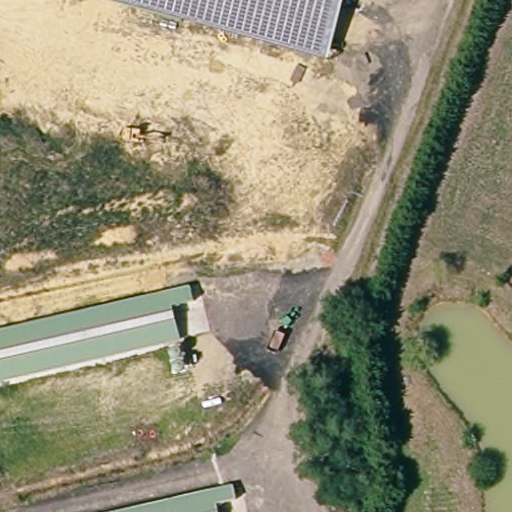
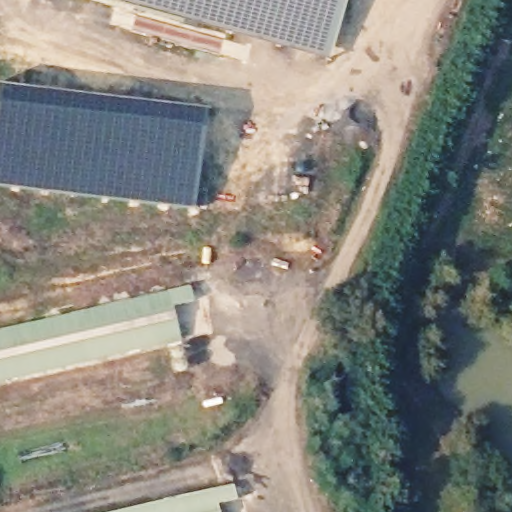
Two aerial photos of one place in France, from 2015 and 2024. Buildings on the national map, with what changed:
unchanged [(123,0),(344,0),(330,54),(123,0)]
new [(120,100),(118,114),(202,127),(195,210),(131,204),(0,187),(0,85),(120,100)]
unchanged [(195,301),(172,306),(181,340),(0,382),(0,329),(190,285),(195,301)]
unchanged [(237,491),(240,503),(220,507),(222,512),(145,512),(237,491)]

